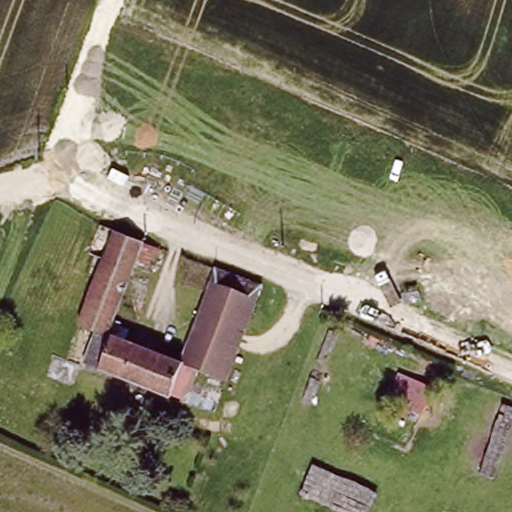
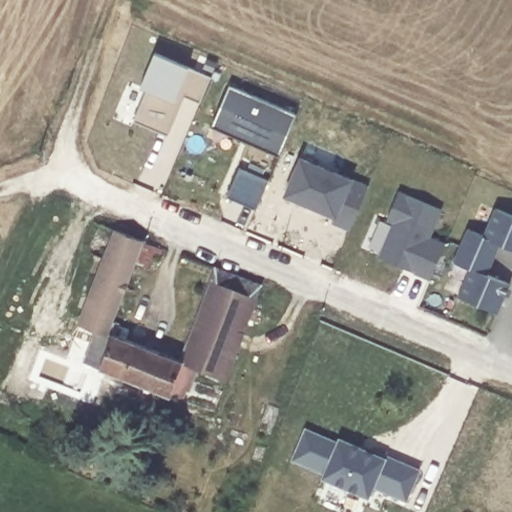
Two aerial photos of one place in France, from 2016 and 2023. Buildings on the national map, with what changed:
new [(199,103),(184,96),(168,135),(133,121),(146,90),(138,86),(154,51),(189,66),(211,78),(199,103)]
new [(279,156),(211,126),(229,85),(298,114),(279,156)]
new [(331,223),(336,217),(283,195),(301,156),(353,178),(369,185),(349,230),(331,223)]
new [(256,209),(226,197),(238,166),(269,180),(256,209)]
new [(376,258),(390,224),(385,221),(398,191),(442,209),(431,236),(446,243),(431,281),(376,258)]
new [(469,268),(453,261),(466,229),(483,235),(494,208),(512,216),(512,250),(502,246),(489,275),(511,283),(498,312),(456,296),(469,268)]
unchanged [(98,335),(83,328),(116,252),(98,244),(108,214),(168,240),(158,262),(146,254),(115,328),(187,358),(202,364),(188,397),(91,355),(98,335)]
unchanged [(192,346),(186,344),(196,321),(201,324),(206,313),(201,311),(209,289),(216,292),(227,264),(272,283),(233,378),(202,364),(187,358),(192,346)]
demolished [(42,379),(46,369),(50,359),(73,368),(68,379),(63,389),(42,379)]
demolished [(388,400),(397,369),(427,384),(418,414),(388,400)]
demolished [(506,403),(489,455),(474,450),(464,469),(454,463),(484,393),(506,403)]
new [(407,502),(374,488),(369,499),(321,478),(322,474),(290,461),(306,427),(336,441),(339,436),(384,456),(384,453),(421,470),(407,502)]

